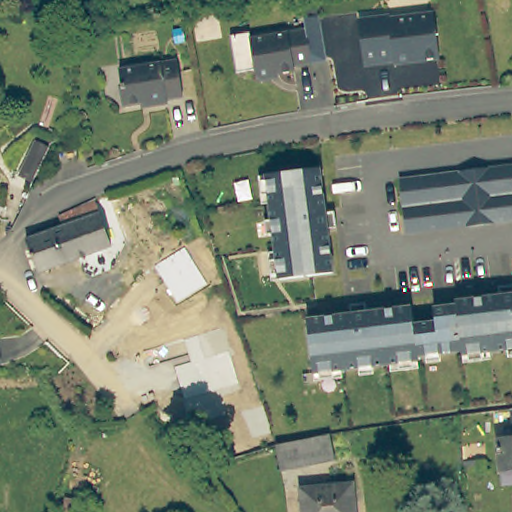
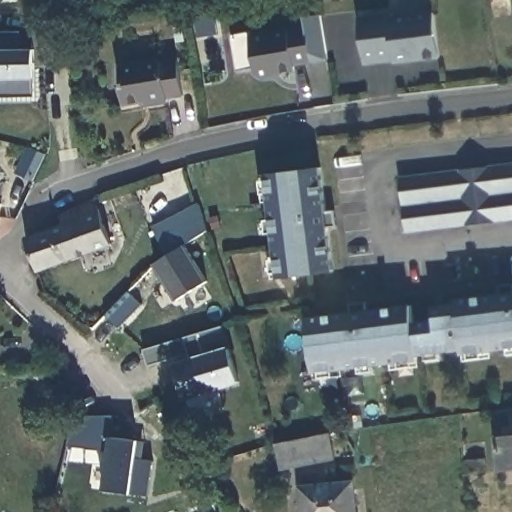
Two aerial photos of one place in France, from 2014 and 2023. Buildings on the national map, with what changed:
unchanged [(388,12),(390,15),(433,10),(439,55),(422,57),(421,54),(415,55),(414,57),(394,60),(393,57),(363,61),(357,17),(388,12)]
unchanged [(301,26),(307,60),(289,64),(289,68),(269,72),(266,77),(256,79),(251,75),(244,36),(301,26)]
new [(21,32),(21,50),(33,50),(34,79),(34,97),(0,97),(0,32),(21,32)]
unchanged [(172,58),(178,95),(162,97),(163,102),(145,105),(144,100),(118,105),(115,86),(117,85),(114,67),(172,58)]
unchanged [(43,155),(31,149),(35,143),(46,149),(43,155)]
unchanged [(260,168),(314,162),(320,207),(329,205),(331,220),(322,221),(327,266),(273,272),(260,168)]
unchanged [(512,163),(512,219),(405,232),(399,177),(512,163)]
unchanged [(37,271),(25,239),(61,224),(58,214),(93,197),(111,243),(37,271)]
unchanged [(198,205),(206,233),(185,247),(206,282),(177,301),(154,266),(169,257),(152,227),(198,205)]
unchanged [(411,350),(411,353),(307,367),(301,312),(345,307),(344,298),(360,296),(361,305),(405,300),(407,317),(429,315),(428,301),(449,298),(450,301),(450,295),(493,289),(493,280),(509,278),(510,287),(512,286),(512,342),(456,348),(456,344),(411,350)]
unchanged [(223,327),(230,348),(240,385),(184,400),(174,363),(174,360),(147,367),(143,351),(223,327)]
new [(113,417),(107,451),(68,448),(73,417),(113,417)]
new [(137,438),(135,454),(153,457),(148,498),(83,490),(87,461),(102,462),(103,451),(107,451),(110,433),(137,438)]
unchanged [(329,434),(334,459),(280,469),(275,445),(329,434)]
unchanged [(498,436),(512,435),(512,466),(500,467),(498,436)]
unchanged [(352,484),(354,512),(302,512),(299,487),(352,484)]

